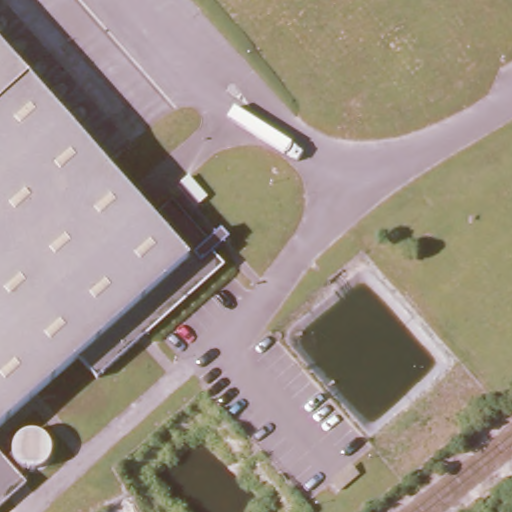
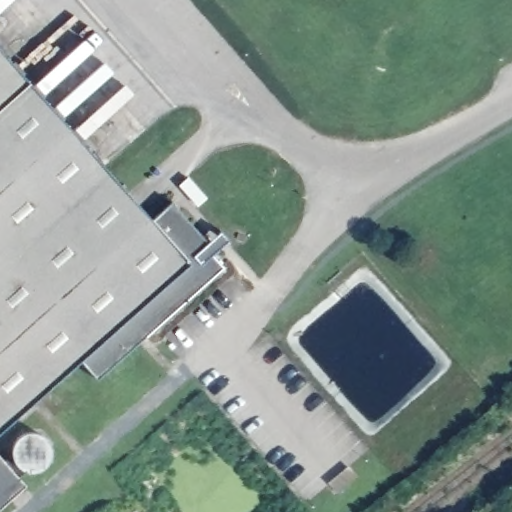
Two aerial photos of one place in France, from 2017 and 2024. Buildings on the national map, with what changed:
unchanged [(174,202),(211,241),(209,243),(220,251),(214,256),(225,268),(97,380),(79,359),(0,428),(0,46),(153,220),(174,202)]
unchanged [(12,454),(12,450),(13,444),(15,439),(19,436),(24,433),(29,432),(36,432),(41,434),(45,437),(49,441),(50,444),(52,449),(52,454),(50,458),(48,463),(45,466),(42,469),(37,471),(31,471),(27,471),(25,470),(18,477),(25,485),(0,508),(0,456),(4,461),(12,454)]

